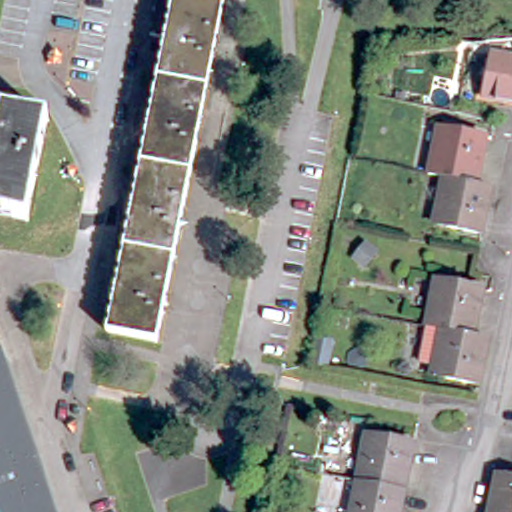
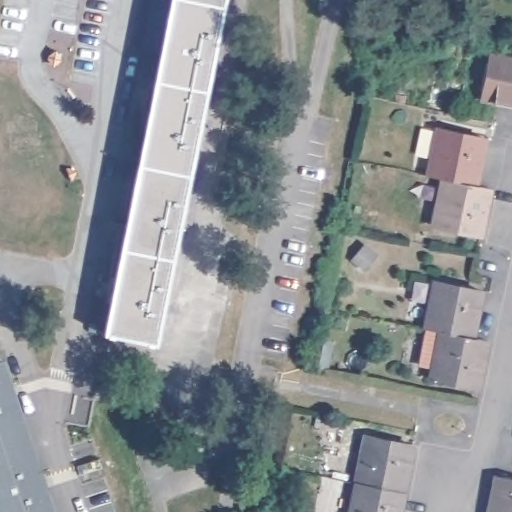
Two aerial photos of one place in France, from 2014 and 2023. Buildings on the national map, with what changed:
unchanged [(163,38),(148,35),(155,0),(224,0),(220,21),(207,85),(157,75),(163,38)]
unchanged [(512,56),(512,101),(500,99),(480,95),(489,51),(512,56)]
unchanged [(140,158),(157,75),(207,85),(191,170),(139,160),(140,158)]
demolished [(43,117),(30,182),(23,216),(0,211),(0,108),(43,117)]
unchanged [(434,125),(484,135),(474,181),(441,174),(426,171),(434,125)]
unchanged [(124,236),(139,160),(191,170),(174,253),(123,243),(124,236)]
unchanged [(483,224),(481,231),(433,222),(441,174),(474,181),(481,183),(491,185),(483,224)]
unchanged [(105,328),(120,258),(123,243),(174,253),(158,338),(105,328)]
unchanged [(368,255),(355,263),(349,253),(361,244),(368,255)]
unchanged [(423,329),(433,283),(479,292),(471,339),(423,329)]
unchanged [(487,342),(478,388),(429,379),(429,368),(416,366),(423,329),(471,339),(480,340),(487,342)]
unchanged [(52,512),(2,512),(0,505),(0,358),(52,512)]
unchanged [(404,491),(357,481),(366,438),(414,448),(404,491)]
unchanged [(497,474),(512,476),(512,512),(489,512),(497,474)]
unchanged [(357,481),(404,491),(400,512),(351,512),(357,481)]

